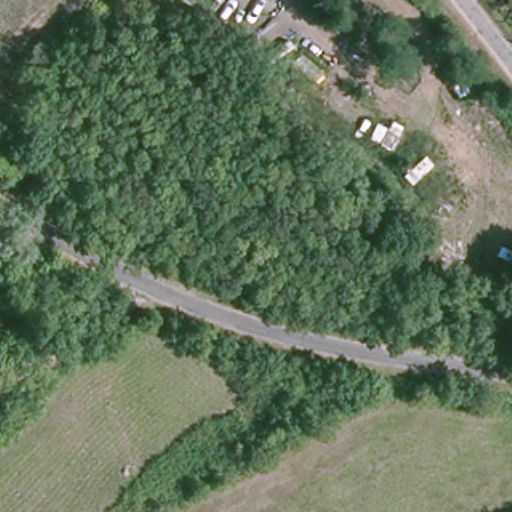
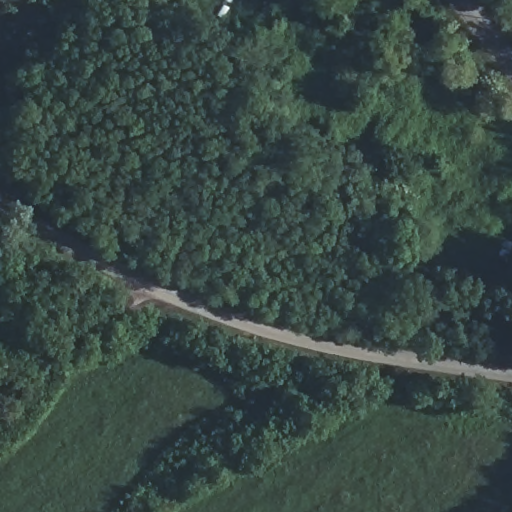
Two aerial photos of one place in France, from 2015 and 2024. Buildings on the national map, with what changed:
[]

